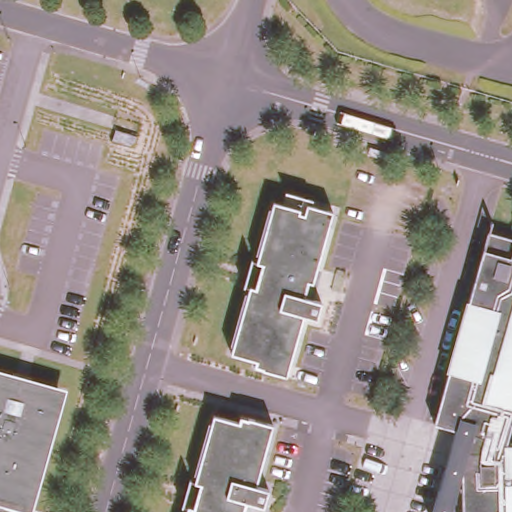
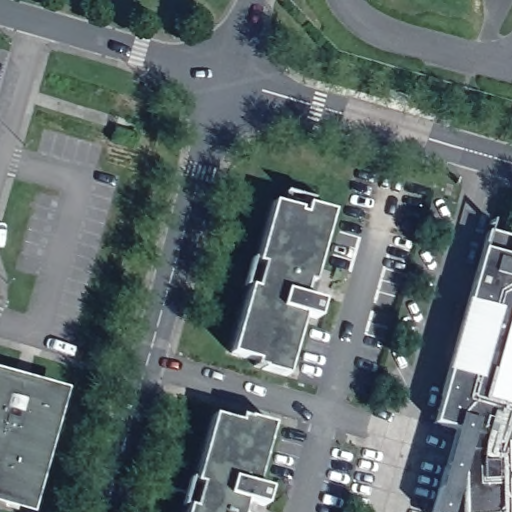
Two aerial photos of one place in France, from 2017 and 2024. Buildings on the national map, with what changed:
unchanged [(130,140),(109,135),(112,124),(133,129),(130,140)]
unchanged [(257,367),(250,365),(251,360),(226,352),(245,285),(250,286),(257,262),(252,261),(269,200),(279,203),(282,190),(304,196),(302,203),(329,210),(312,268),(317,270),(309,298),(317,300),(312,318),(299,315),(282,375),(257,368),(257,367)]
unchanged [(466,430),(449,426),(428,421),(481,230),(510,236),(507,246),(505,255),(512,257),(512,403),(512,405),(512,466),(505,493),(512,495),(512,512),(458,512),(466,430)]
unchanged [(31,503),(0,495),(0,373),(62,390),(31,503)]
unchanged [(187,505),(192,506),(199,483),(194,481),(212,414),(237,421),(239,415),(247,417),(247,416),(272,423),(255,484),(268,487),(263,505),(245,500),(242,512),(185,512),(187,505)]
unchanged [(449,426),(466,430),(458,512),(425,512),(449,426)]

